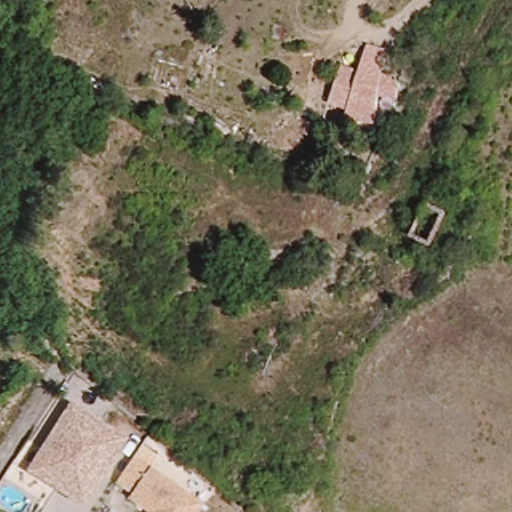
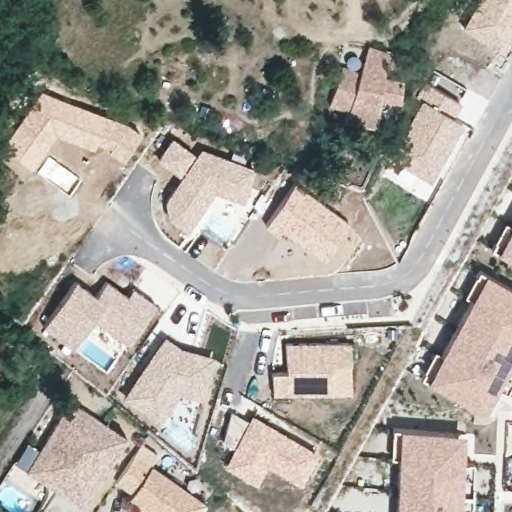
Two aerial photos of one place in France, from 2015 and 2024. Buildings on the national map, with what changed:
new [(512,32),(501,49),(461,27),(477,0),(512,0),(512,32)]
new [(360,69),(367,43),(389,49),(384,74),(380,74),(379,96),(375,127),(344,122),(347,111),(328,106),(341,65),(360,69)]
demolished [(359,69),(356,85),(333,81),(338,65),(359,69)]
unchanged [(379,96),(380,74),(401,76),(397,98),(379,96)]
new [(406,138),(423,95),(434,75),(467,90),(455,116),(462,120),(429,181),(393,162),(406,138)]
new [(51,97),(119,120),(140,131),(123,160),(96,143),(93,149),(42,128),(42,126),(39,124),(51,97)]
new [(179,176),(156,160),(172,136),(195,152),(200,145),(256,167),(242,201),(214,190),(185,229),(163,211),(164,199),(179,176)]
new [(294,181),(349,221),(322,259),(289,237),(265,225),(294,181)]
new [(493,245),(507,220),(511,223),(512,222),(512,255),(500,249),(493,245)]
new [(488,377),(474,402),(430,377),(422,373),(436,348),(440,350),(471,295),(467,292),(481,267),(488,271),(512,284),(512,372),(504,386),(495,381),(488,377)]
new [(74,278),(94,292),(105,278),(126,293),(132,285),(155,302),(126,342),(92,318),(70,347),(42,327),(74,278)]
new [(163,334),(181,345),(214,355),(200,398),(178,392),(157,421),(121,397),(163,334)]
new [(350,341),(350,392),(323,391),(322,371),(317,371),(284,370),(283,341),(350,341)]
unchanged [(19,472),(63,407),(117,440),(78,506),(19,472)]
new [(220,439),(230,411),(246,418),(250,412),(317,448),(298,481),(265,464),(255,481),(222,465),(231,445),(220,439)]
new [(390,458),(391,429),(400,430),(451,431),(449,460),(458,460),(467,461),(466,493),(466,512),(393,512),(395,458),(390,458)]
unchanged [(132,461),(197,504),(193,512),(143,512),(113,492),(132,461)]

